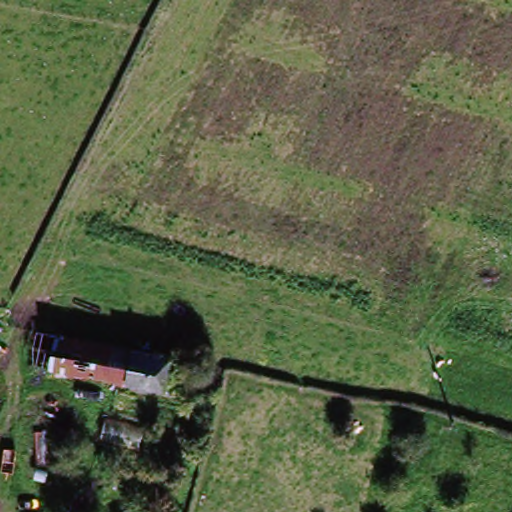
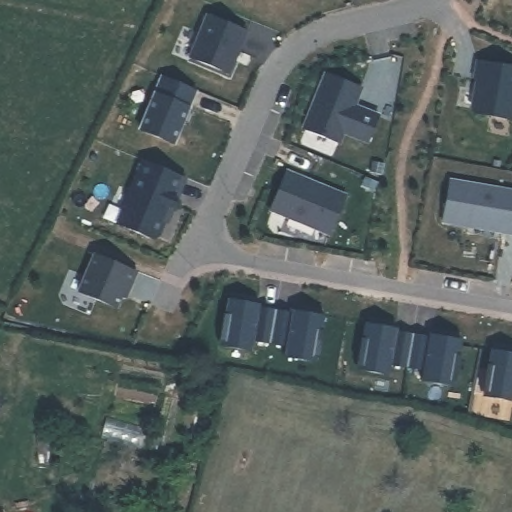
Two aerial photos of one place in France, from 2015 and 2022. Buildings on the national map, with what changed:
new [(208,15),(248,32),(229,74),(191,57),(208,15)]
new [(476,80),(474,79),(477,62),(512,69),(512,118),(512,120),(474,114),(471,108),(476,80)]
new [(326,70),(363,85),(354,105),(363,109),(364,106),(379,112),(369,140),(344,130),(340,140),(304,125),(326,70)]
new [(197,90),(174,145),(136,130),(161,76),(197,90)]
new [(186,180),(161,236),(154,239),(115,225),(143,161),(186,180)]
new [(287,168),(346,194),(328,235),(269,210),(287,168)]
new [(512,190),(512,236),(442,225),(449,179),(512,190)]
new [(121,295),(116,307),(79,291),(95,253),(137,271),(131,287),(126,297),(121,295)]
new [(259,305),(259,308),(323,317),(314,364),(218,345),(228,300),(259,305)]
demolished [(95,362),(23,344),(21,343),(27,320),(124,349),(179,358),(173,383),(95,362)]
new [(397,331),(397,333),(430,338),(431,335),(461,340),(453,387),(422,381),(425,369),(389,364),(386,377),(356,372),(366,326),(397,331)]
new [(512,354),(512,404),(482,398),(490,350),(512,354)]

